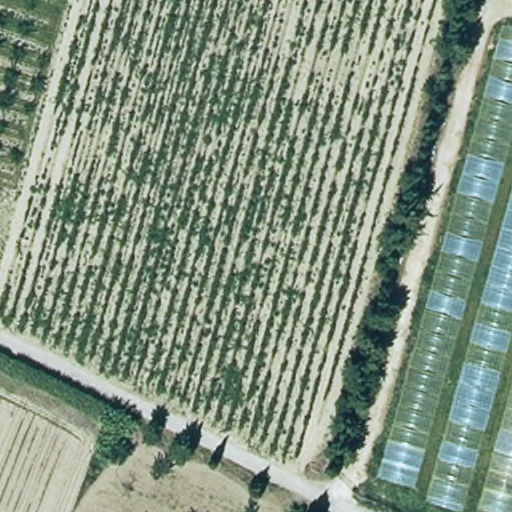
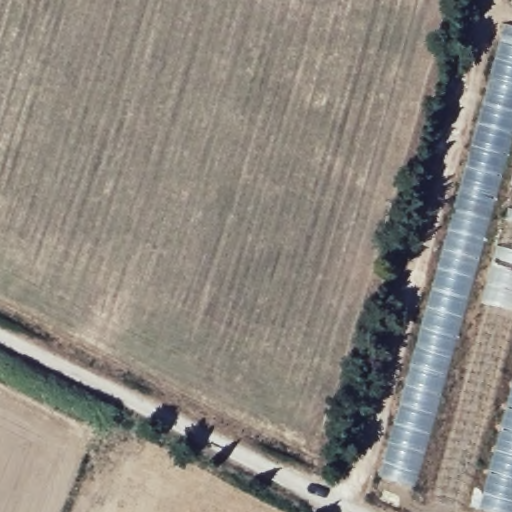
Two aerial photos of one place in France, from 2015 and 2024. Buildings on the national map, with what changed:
unchanged [(436,512),(416,506),(419,493),(371,482),(503,11),(512,14),(512,512),(436,512)]

